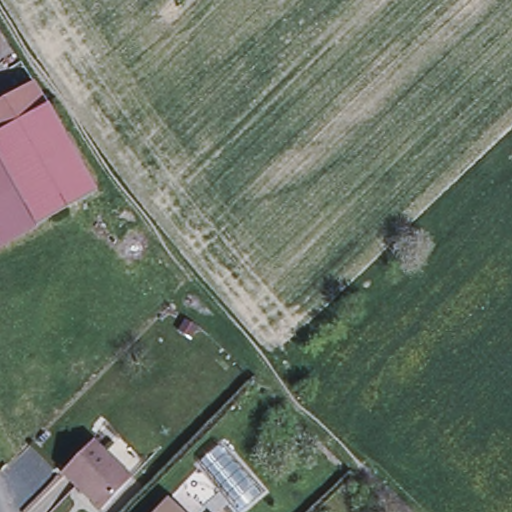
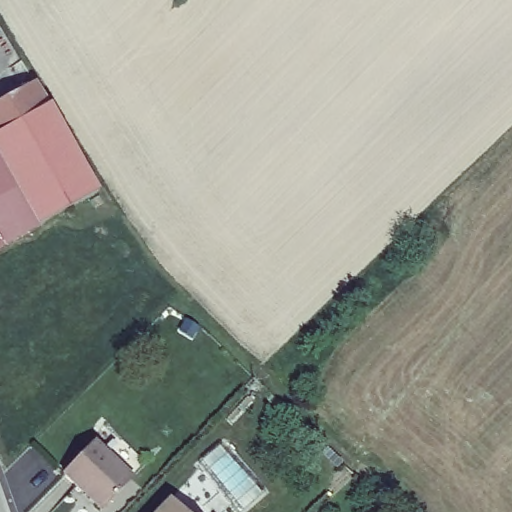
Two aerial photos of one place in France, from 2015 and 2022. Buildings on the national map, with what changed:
unchanged [(37,107),(49,99),(80,154),(98,187),(38,219),(35,222),(0,242),(0,127),(37,107)]
unchanged [(133,478),(102,510),(65,472),(95,441),(133,478)]
unchanged [(267,492),(242,512),(239,512),(200,463),(223,444),(267,492)]
unchanged [(177,512),(153,512),(165,500),(177,512)]
unchanged [(211,512),(209,512),(210,511),(211,512)]

